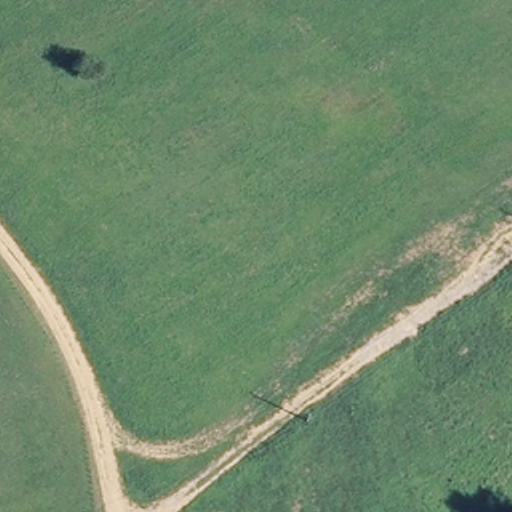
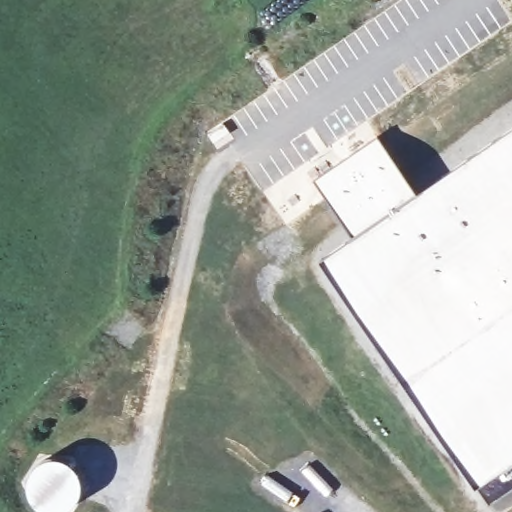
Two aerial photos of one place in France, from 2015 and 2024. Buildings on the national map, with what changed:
new [(475,487),(319,261),(352,238),(314,180),(379,136),(418,194),(512,129),(512,462),(475,487)]

